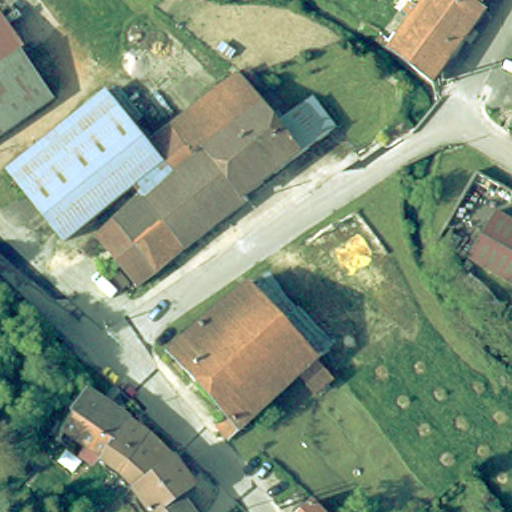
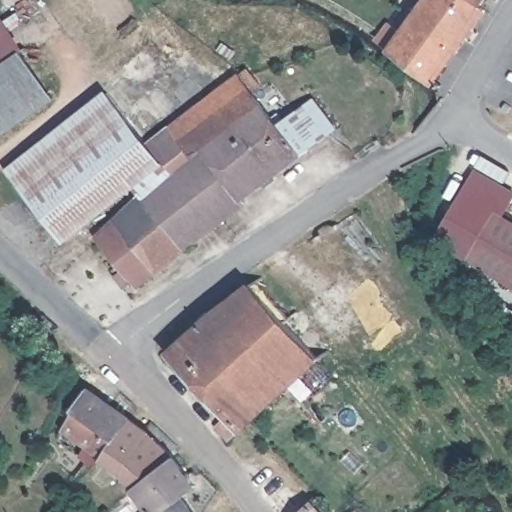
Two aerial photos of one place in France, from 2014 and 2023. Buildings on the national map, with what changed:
unchanged [(382,49),(405,19),(395,10),(402,1),(412,9),(418,0),(469,0),(473,3),(478,7),(424,82),(382,51),(382,49)]
unchanged [(473,3),(469,0),(475,0),(473,3)]
unchanged [(0,57),(0,27),(15,46),(0,57)]
unchanged [(0,128),(0,57),(15,46),(47,92),(0,128)]
unchanged [(260,88),(252,94),(277,126),(308,103),(313,99),(335,131),(331,134),(302,156),(231,208),(233,213),(214,227),(170,171),(167,167),(147,140),(247,69),(260,88)]
unchanged [(103,89),(147,140),(167,167),(142,190),(134,179),(65,238),(9,170),(103,89)]
new [(512,188),(512,200),(502,217),(493,212),(467,257),(434,239),(475,168),(512,188)]
unchanged [(182,252),(137,200),(170,171),(214,227),(182,252)]
unchanged [(160,268),(135,288),(95,237),(137,200),(182,252),(160,268)]
unchanged [(465,260),(493,212),(512,223),(512,289),(465,260)]
unchanged [(309,385),(294,367),(234,420),(222,431),(208,416),(219,406),(162,341),(246,274),(312,350),(310,352),(325,370),(309,385)]
unchanged [(51,435),(58,425),(55,425),(78,394),(85,385),(126,414),(95,453),(69,433),(61,442),(51,435)]
unchanged [(487,424),(480,413),(489,406),(496,417),(487,424)]
unchanged [(145,427),(167,450),(126,482),(115,467),(95,453),(126,414),(145,427)]
unchanged [(189,478),(175,488),(192,510),(193,512),(141,512),(145,508),(126,482),(167,450),(189,478)]
unchanged [(317,512),(300,512),(310,504),(317,512)]

